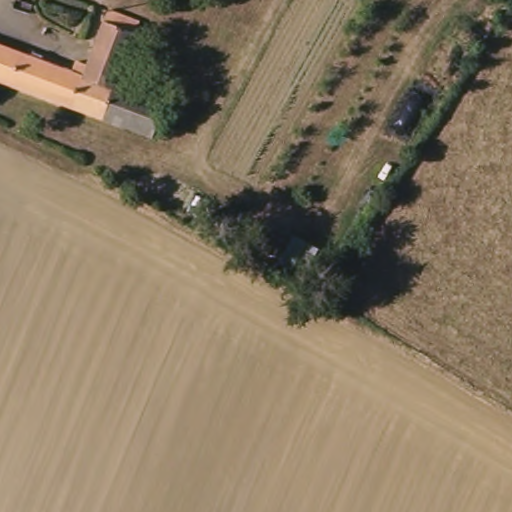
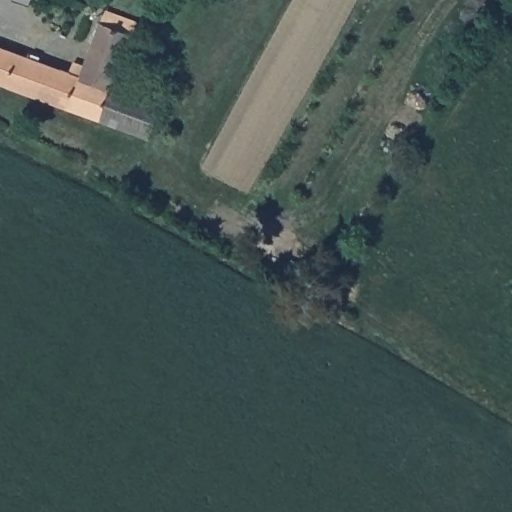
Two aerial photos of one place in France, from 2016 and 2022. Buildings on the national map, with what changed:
unchanged [(0,83),(0,44),(68,68),(73,54),(89,57),(101,26),(134,37),(122,73),(116,88),(171,112),(161,143),(0,83)]

